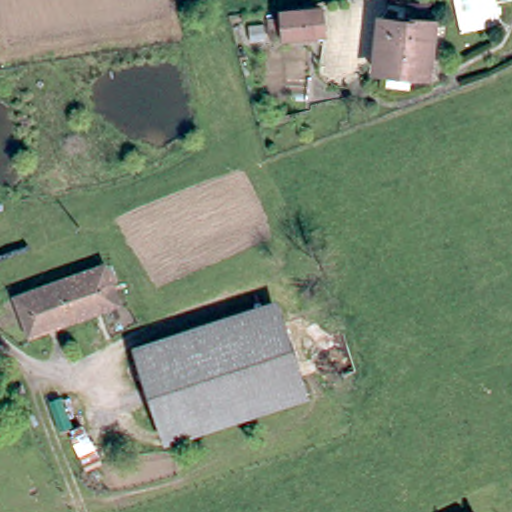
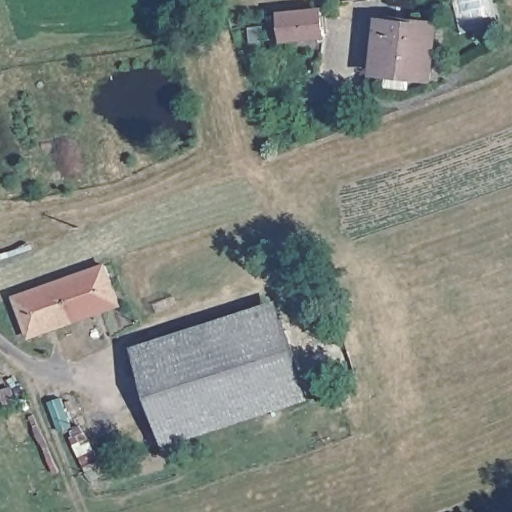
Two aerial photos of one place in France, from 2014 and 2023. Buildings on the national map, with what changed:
unchanged [(502,3),(502,0),(512,0),(512,1),(502,3)]
unchanged [(277,25),(294,21),(293,17),(328,9),(333,36),(297,44),(281,47),(277,25)]
unchanged [(390,94),(393,77),(378,76),(387,30),(401,32),(402,26),(440,30),(436,83),(413,80),(410,98),(390,94)]
unchanged [(24,299),(110,266),(125,300),(35,333),(24,299)]
unchanged [(285,316),(292,338),(219,359),(213,338),(285,316)]
unchanged [(213,338),(219,359),(292,338),(310,398),(163,441),(140,359),(213,338)]
unchanged [(477,512),(451,512),(471,501),(477,512)]

